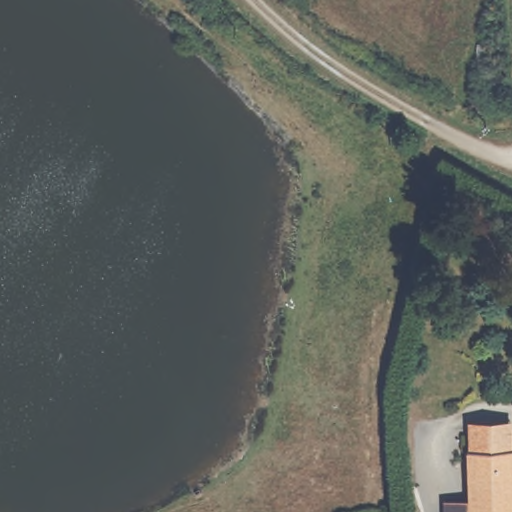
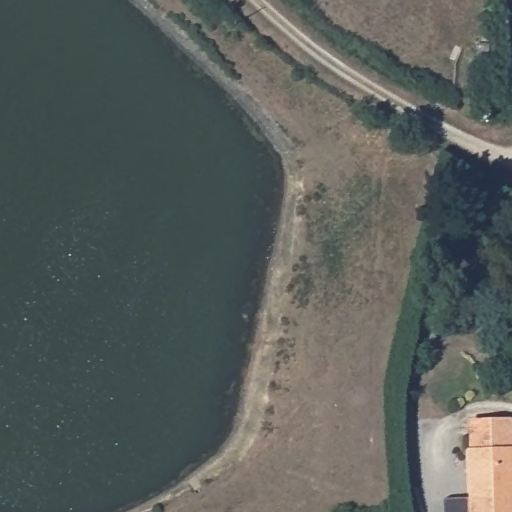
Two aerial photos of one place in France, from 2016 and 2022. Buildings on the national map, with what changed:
unchanged [(473,441),(472,413),(512,411),(512,421),(512,440),(473,441)]
unchanged [(444,491),(469,491),(467,442),(473,441),(512,440),(512,512),(445,512),(444,491)]

